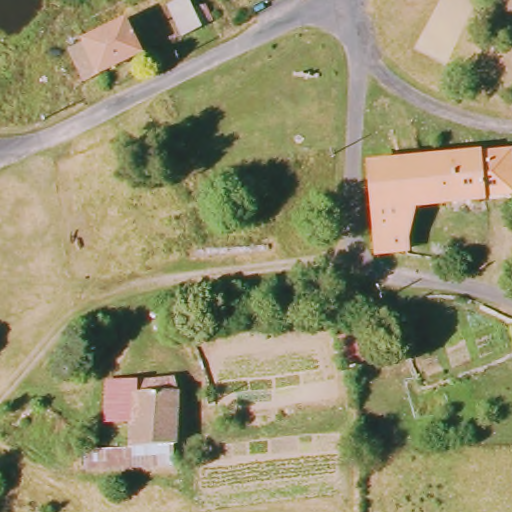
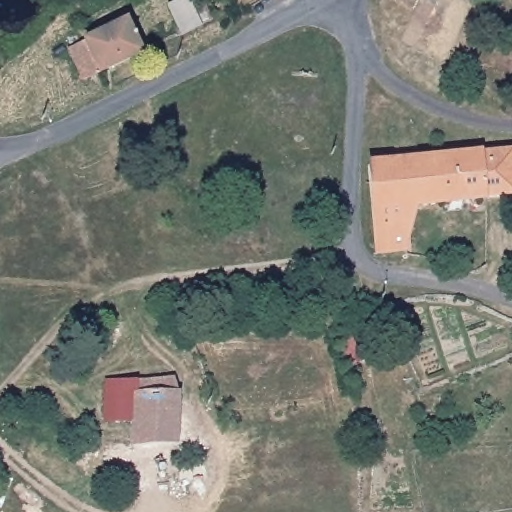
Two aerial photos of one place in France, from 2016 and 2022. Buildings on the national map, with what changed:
unchanged [(192,29),(175,35),(162,5),(174,0),(181,0),(192,29)]
unchanged [(136,54),(96,72),(82,39),(120,21),(136,54)]
unchanged [(506,196),(480,198),(478,159),(503,156),(506,196)]
unchanged [(480,198),(408,207),(410,256),(375,257),(375,167),(392,166),(410,164),(478,159),(480,198)]
unchanged [(334,341),(364,333),(372,363),(342,372),(334,341)]
unchanged [(133,388),(132,432),(103,421),(103,388),(133,388)]
unchanged [(133,388),(172,388),(171,450),(167,450),(133,452),(132,432),(133,388)]
unchanged [(167,450),(169,470),(82,475),(80,457),(133,452),(167,450)]

